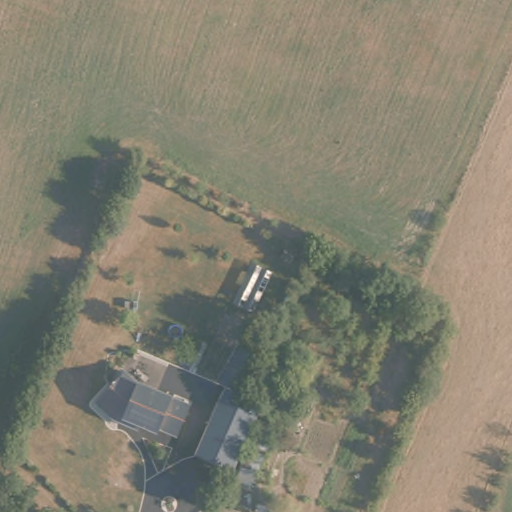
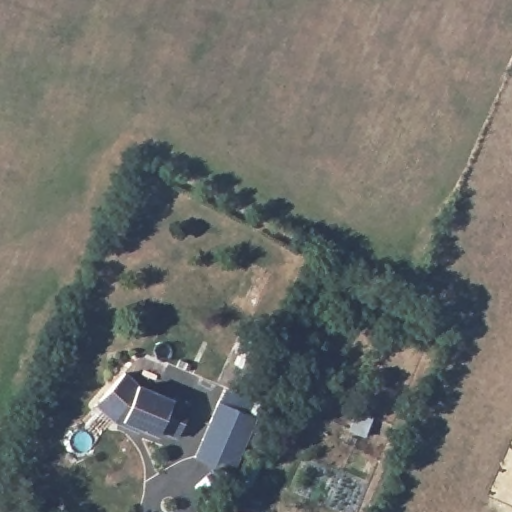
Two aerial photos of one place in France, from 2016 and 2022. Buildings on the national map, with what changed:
unchanged [(190,403),(178,436),(159,428),(157,432),(121,419),(99,398),(124,371),(138,384),(190,403)]
unchanged [(230,383),(265,401),(233,472),(194,458),(230,383)]

